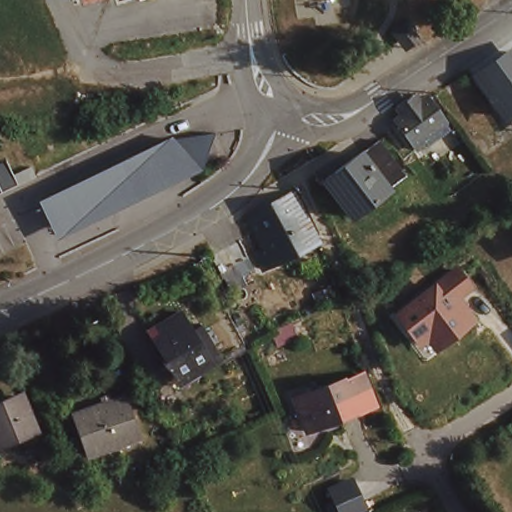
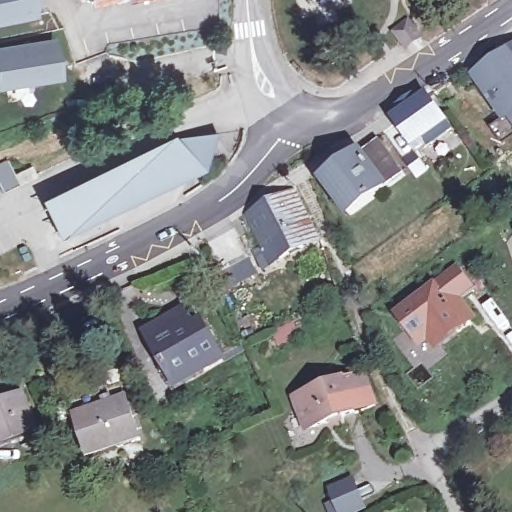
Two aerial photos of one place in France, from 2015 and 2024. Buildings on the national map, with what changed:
new [(37,18),(0,24),(0,0),(34,0),(37,18)]
unchanged [(386,27),(393,37),(397,44),(384,53),(383,52),(372,37),(386,27)]
new [(54,38),(61,80),(0,89),(0,46),(54,38)]
unchanged [(512,87),(494,61),(512,48),(512,87)]
unchanged [(460,85),(494,61),(512,87),(512,107),(487,125),(460,85)]
unchanged [(438,130),(417,144),(396,114),(401,111),(397,104),(417,90),(421,97),(428,92),(443,115),(448,122),(438,130)]
unchanged [(171,137),(176,143),(216,134),(202,172),(57,240),(38,202),(171,137)]
unchanged [(405,175),(350,216),(325,181),(378,141),(405,175)]
unchanged [(7,162),(13,175),(31,167),(37,180),(19,187),(0,196),(0,165),(7,162)]
unchanged [(297,192),(317,241),(261,268),(253,253),(265,247),(248,215),(297,192)]
unchanged [(473,287),(461,296),(477,319),(437,352),(431,342),(422,348),(395,313),(455,266),(473,287)]
unchanged [(177,388),(144,336),(177,316),(189,336),(198,330),(218,363),(177,388)]
unchanged [(343,378),(355,411),(307,430),(295,397),(343,378)]
unchanged [(136,431),(114,438),(115,442),(89,452),(76,417),(105,407),(102,398),(111,395),(114,403),(125,399),(136,431)]
unchanged [(15,397),(28,430),(0,441),(0,403),(15,397)]
unchanged [(363,508),(354,512),(340,512),(330,490),(351,481),(363,508)]

